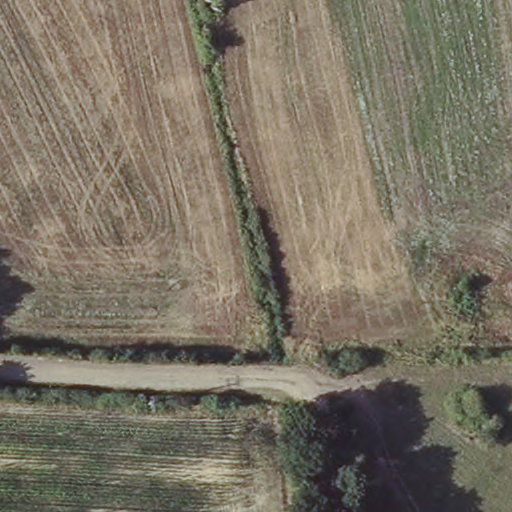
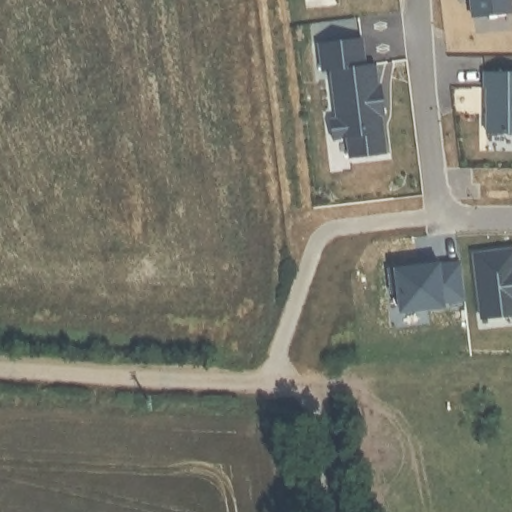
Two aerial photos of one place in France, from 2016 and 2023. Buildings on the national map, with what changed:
new [(472,17),(469,0),(512,0),(512,12),(472,17)]
new [(363,38),(366,64),(377,61),(378,83),(382,82),(386,117),(383,118),(387,152),(349,155),(347,136),(331,137),(328,119),(336,118),(328,68),(320,70),(317,42),(363,38)]
new [(485,132),(486,88),(482,88),(482,71),(512,72),(512,131),(485,132)]
new [(512,247),(512,315),(481,317),(472,252),(512,247)]
new [(393,309),(392,290),(385,291),(382,268),(411,265),(410,261),(430,259),(431,264),(453,261),(458,298),(435,301),(436,303),(393,309)]

